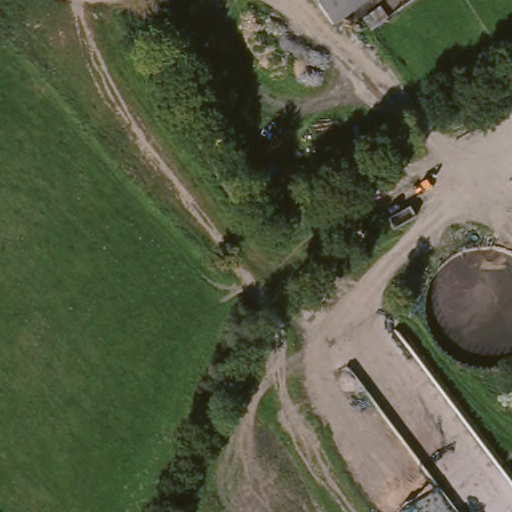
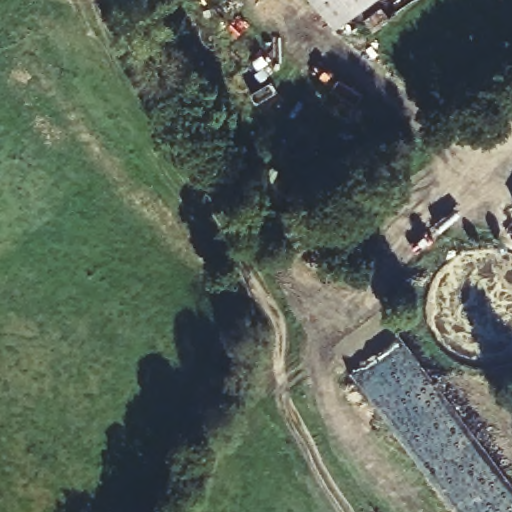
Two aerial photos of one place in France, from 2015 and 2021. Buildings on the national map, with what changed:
unchanged [(333,25),(315,0),(368,0),(333,25)]

